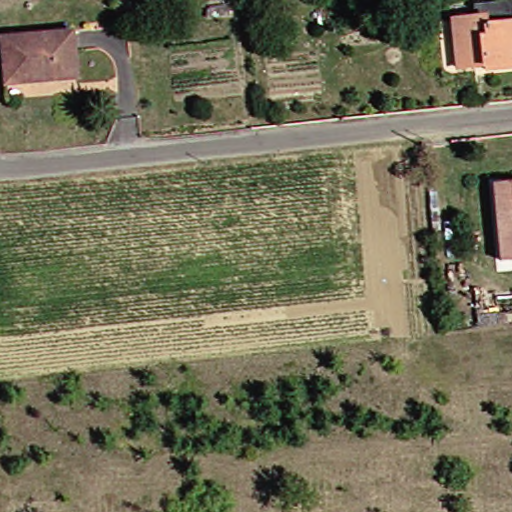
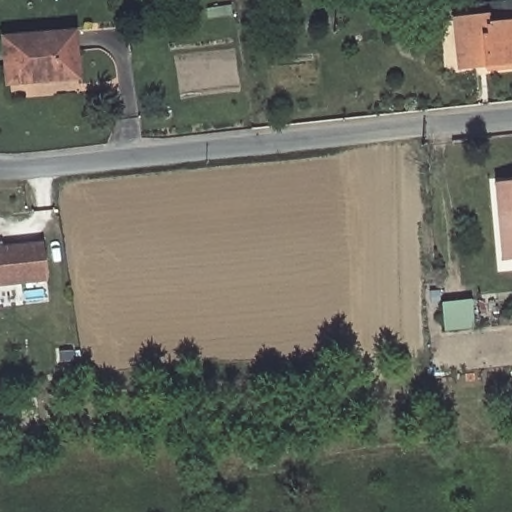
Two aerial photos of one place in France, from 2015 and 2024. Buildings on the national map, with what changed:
unchanged [(461,67),(457,29),(479,27),(478,14),(512,10),(512,76),(489,79),(488,64),(461,67)]
unchanged [(7,39),(76,33),(80,78),(11,84),(7,39)]
unchanged [(499,184),(512,183),(512,261),(505,262),(499,184)]
new [(0,303),(0,298),(0,247),(44,243),(49,283),(18,286),(20,300),(0,303)]

